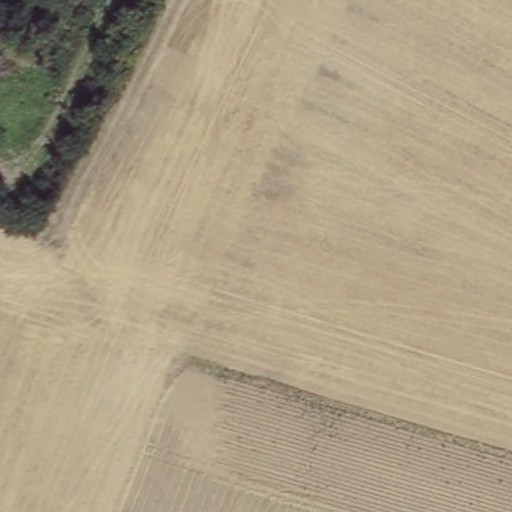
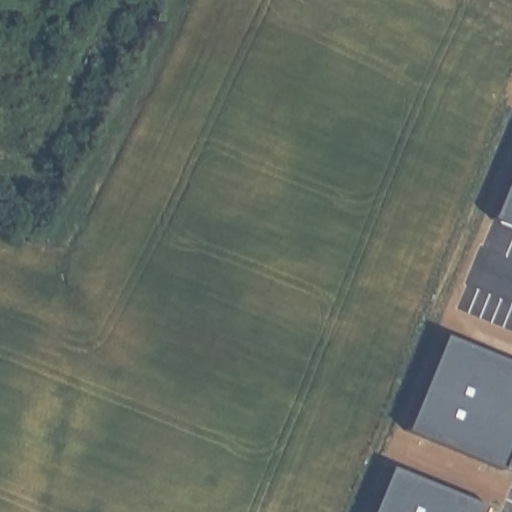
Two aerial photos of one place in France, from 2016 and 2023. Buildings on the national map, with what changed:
new [(512,178),(512,229),(494,222),(512,178)]
new [(512,430),(495,472),(406,435),(446,336),(512,363),(512,430)]
new [(477,512),(374,512),(391,468),(480,504),(477,512)]

